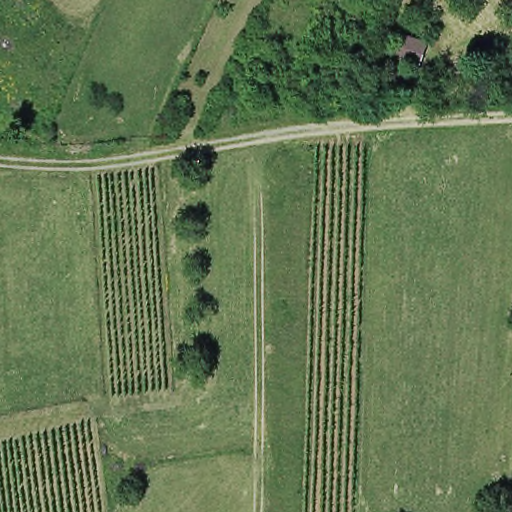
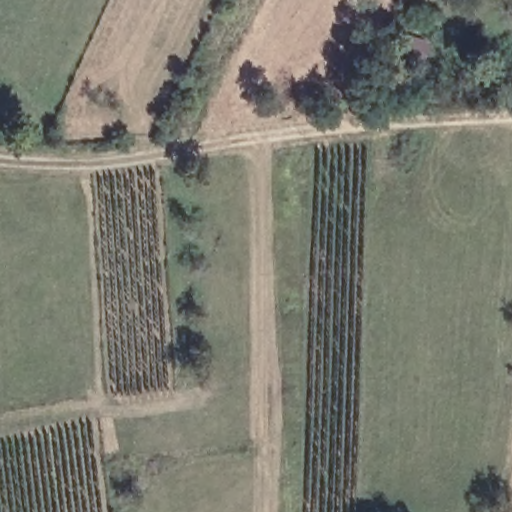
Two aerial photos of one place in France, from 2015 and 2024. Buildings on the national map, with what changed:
unchanged [(390,58),(398,37),(416,44),(422,47),(415,68),(407,65),(390,58)]

